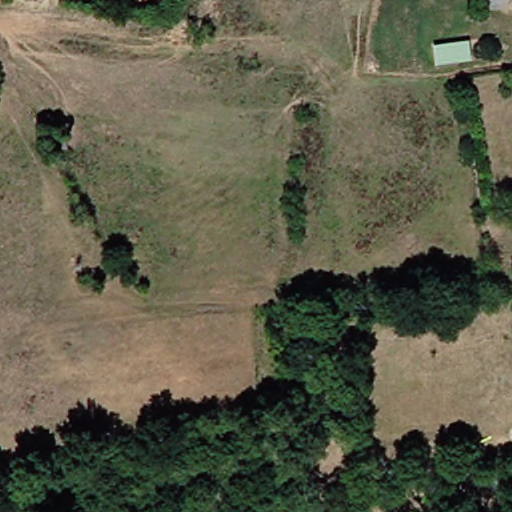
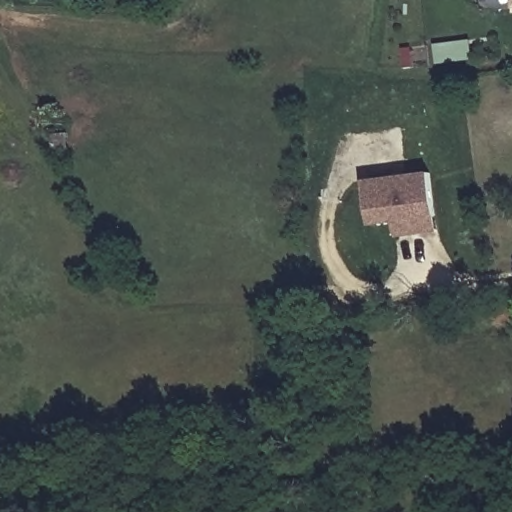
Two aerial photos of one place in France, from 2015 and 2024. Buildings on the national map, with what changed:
new [(468,43),(470,60),(437,63),(435,46),(468,43)]
new [(399,235),(397,223),(366,227),(362,183),(432,176),(437,219),(438,231),(399,235)]

